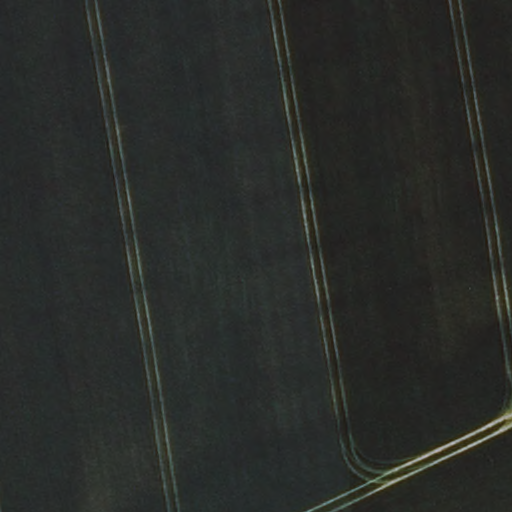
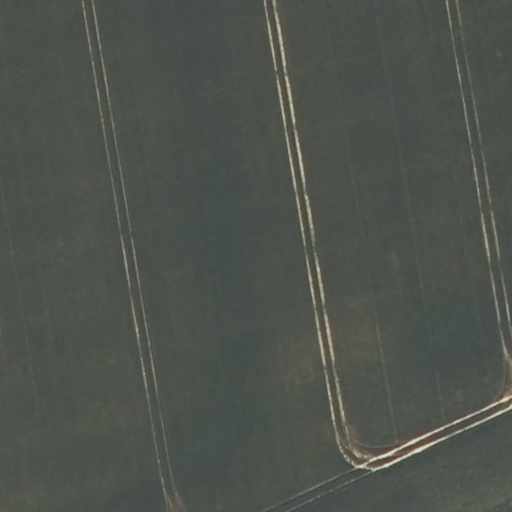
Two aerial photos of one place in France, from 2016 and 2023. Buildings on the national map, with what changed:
[]

